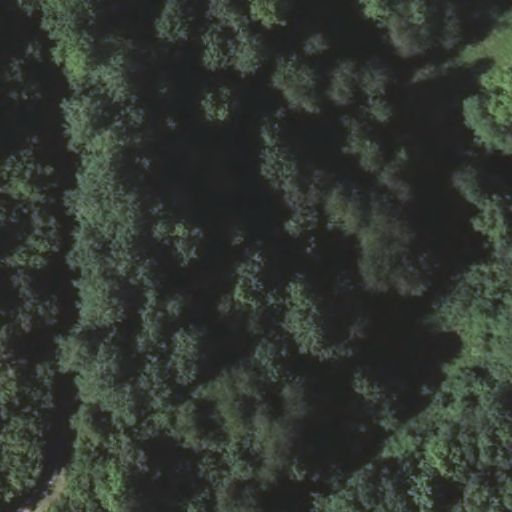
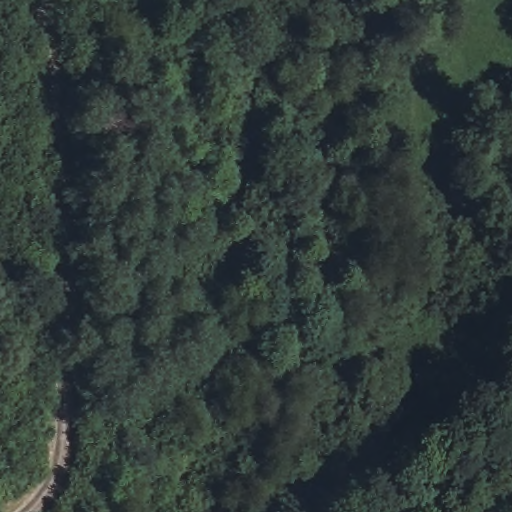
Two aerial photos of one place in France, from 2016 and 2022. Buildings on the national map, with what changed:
[]

